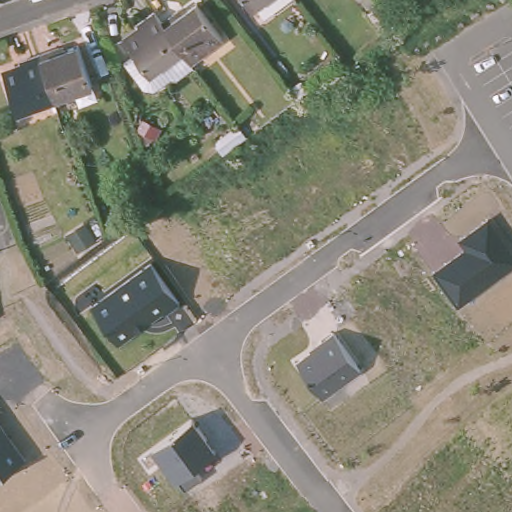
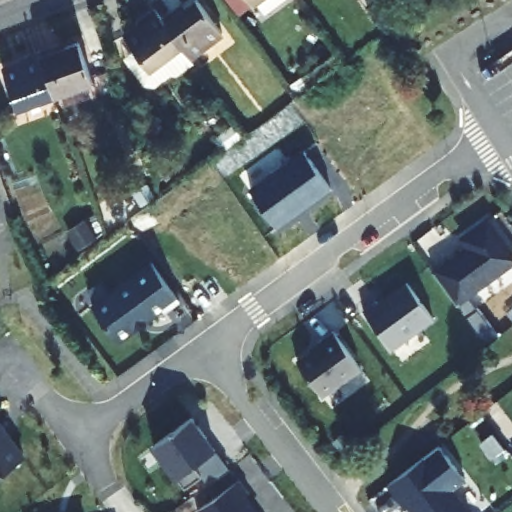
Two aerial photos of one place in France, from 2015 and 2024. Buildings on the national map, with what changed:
unchanged [(177,8),(188,0),(195,0),(218,31),(187,56),(179,45),(158,16),(173,4),(177,8)]
unchanged [(254,0),(274,0),(261,10),(254,0)]
unchanged [(179,45),(187,56),(190,61),(175,71),(169,71),(160,58),(149,67),(122,33),(137,21),(135,18),(150,7),(158,16),(179,45)]
unchanged [(50,41),(53,48),(72,40),(86,80),(50,93),(33,48),(50,41)]
unchanged [(0,74),(0,68),(15,61),(13,56),(33,48),(50,93),(12,107),(0,74)]
new [(332,188),(277,227),(250,189),(305,150),(332,188)]
unchanged [(512,252),(512,270),(458,306),(436,272),(467,250),(458,239),(490,216),(512,252)]
unchanged [(180,301),(162,315),(160,312),(117,342),(93,308),(152,265),(180,301)]
new [(435,319),(391,349),(365,310),(408,281),(435,319)]
unchanged [(362,372),(322,397),(296,363),(308,355),(306,351),(335,332),(362,372)]
unchanged [(215,450),(192,467),(200,477),(183,488),(152,447),(193,418),(215,450)]
unchanged [(0,479),(0,421),(27,459),(0,479)]
new [(442,446),(467,480),(455,489),(472,512),(414,512),(411,507),(409,509),(391,485),(442,446)]
new [(197,465),(217,451),(231,470),(211,484),(205,476),(197,465)]
unchanged [(242,480),(252,493),(245,498),(255,512),(201,512),(200,511),(242,480)]

